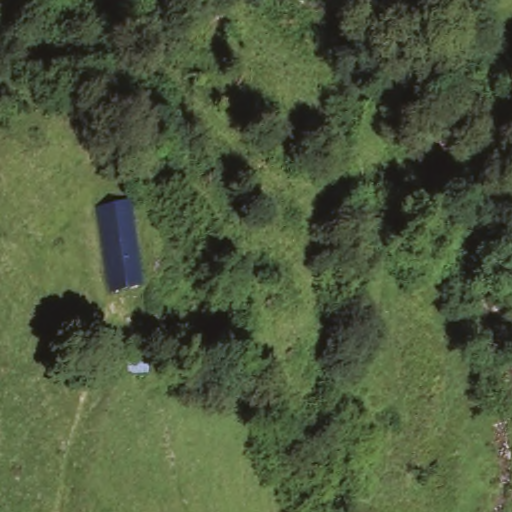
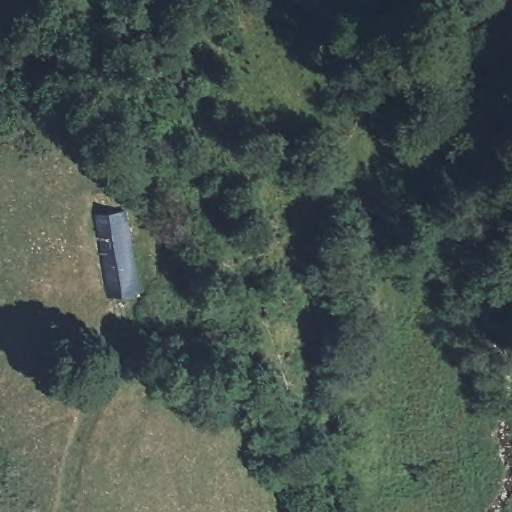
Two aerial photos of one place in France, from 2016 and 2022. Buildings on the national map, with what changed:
unchanged [(140,255),(146,284),(106,293),(93,213),(133,206),(140,255)]

